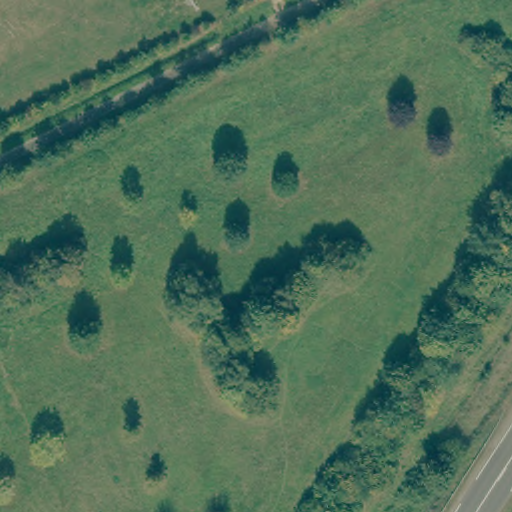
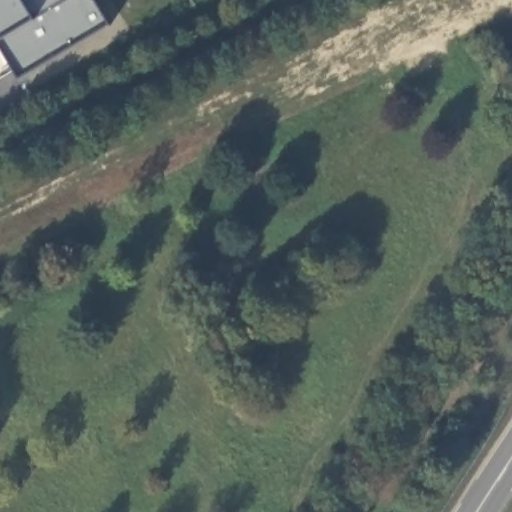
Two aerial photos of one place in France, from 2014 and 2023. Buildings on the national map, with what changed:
new [(110,26),(20,80),(0,48),(0,0),(96,0),(110,26)]

